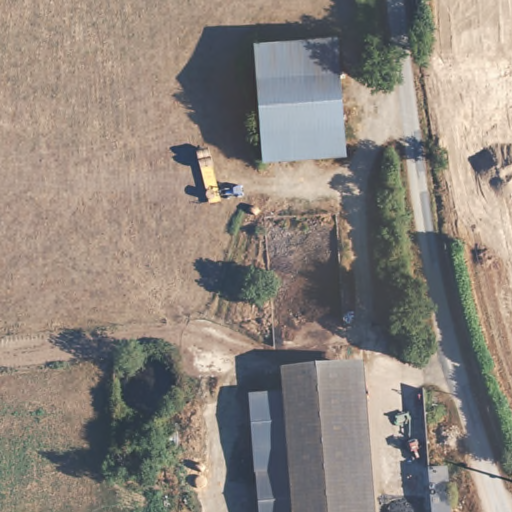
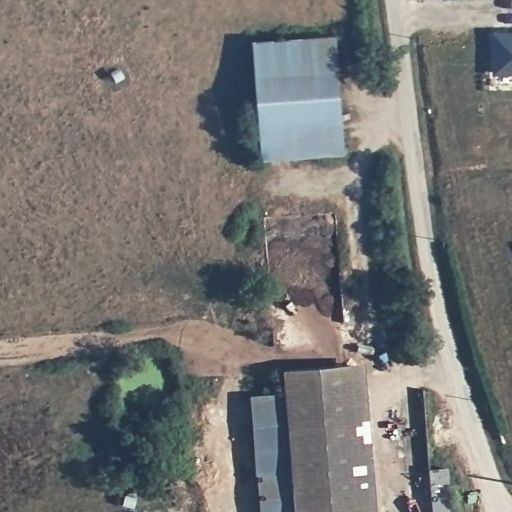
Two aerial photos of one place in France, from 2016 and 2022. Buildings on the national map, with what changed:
new [(491,30),(512,30),(512,75),(492,75),(491,30)]
unchanged [(336,38),(343,153),(254,158),(247,42),(336,38)]
unchanged [(277,393),(276,374),(348,370),(354,491),(282,493),(278,399),(277,393)]
unchanged [(366,370),(371,490),(354,491),(348,370),(366,370)]
unchanged [(277,393),(282,493),(283,512),(258,512),(248,396),(277,393)]
unchanged [(427,475),(446,474),(448,507),(449,512),(429,512),(429,509),(428,493),(427,475)]
unchanged [(372,512),(355,512),(354,491),(371,490),(372,512)]
unchanged [(355,512),(283,512),(282,493),(354,491),(355,512)]

